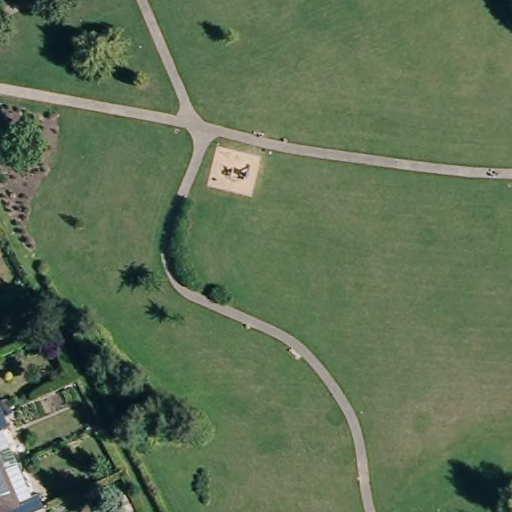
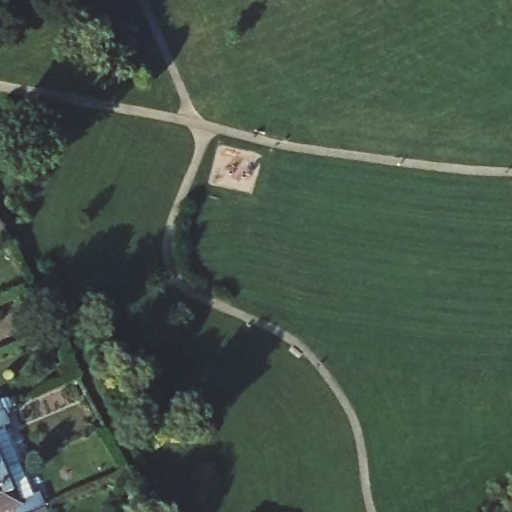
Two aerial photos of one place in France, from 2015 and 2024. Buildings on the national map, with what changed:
unchanged [(4,429),(0,430),(0,419),(4,429)]
unchanged [(9,460),(0,463),(0,441),(9,460)]
unchanged [(1,512),(0,509),(0,469),(12,464),(27,496),(32,494),(39,509),(30,512),(1,512)]
unchanged [(40,512),(30,512),(39,509),(40,512)]

